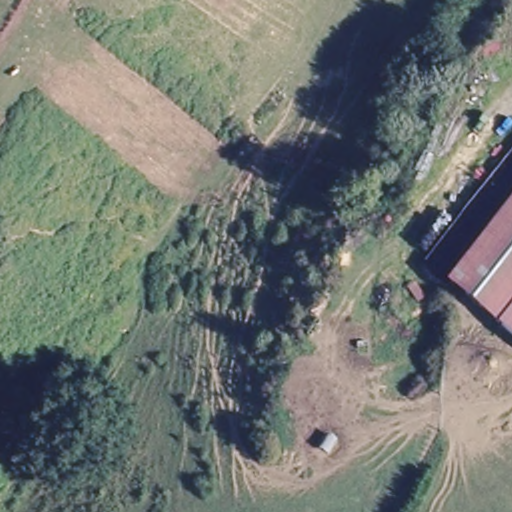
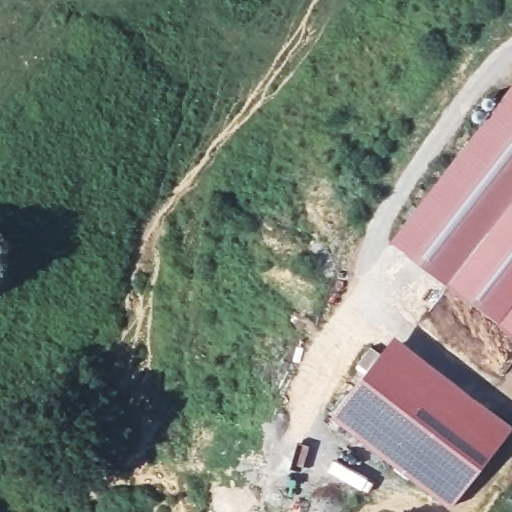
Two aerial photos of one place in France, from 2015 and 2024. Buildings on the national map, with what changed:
new [(448,278),(390,240),(512,85),(512,200),(448,278)]
unchanged [(512,200),(512,297),(496,316),(448,278),(512,200)]
unchanged [(498,318),(512,302),(512,329),(498,318)]
new [(512,426),(512,431),(451,507),(330,417),(395,335),(512,426)]

